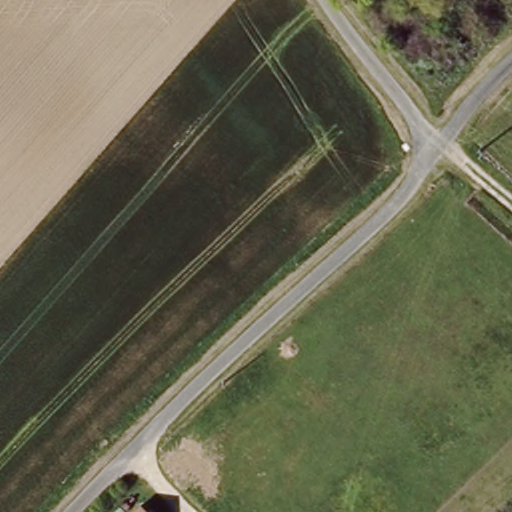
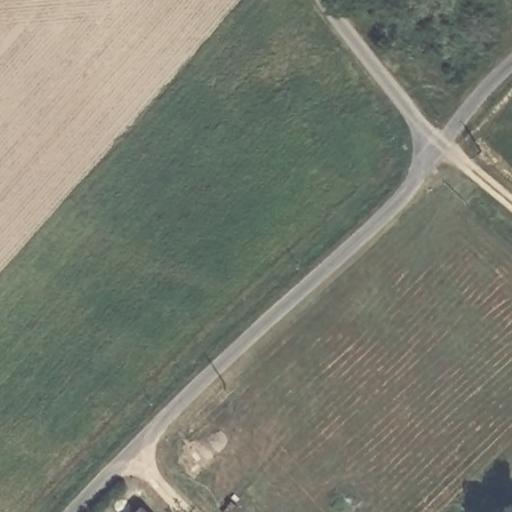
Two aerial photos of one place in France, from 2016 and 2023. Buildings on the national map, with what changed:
unchanged [(153,512),(133,512),(142,502),(153,512)]

